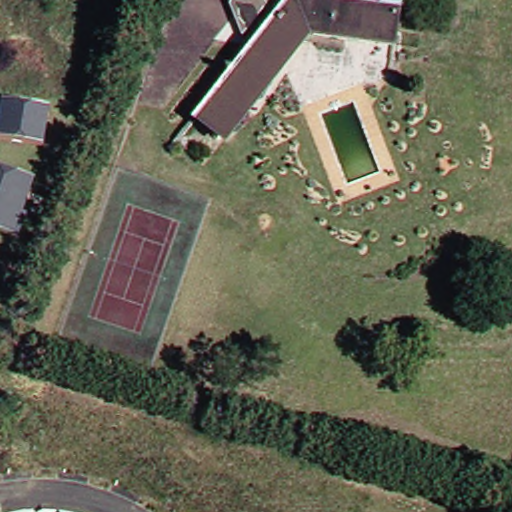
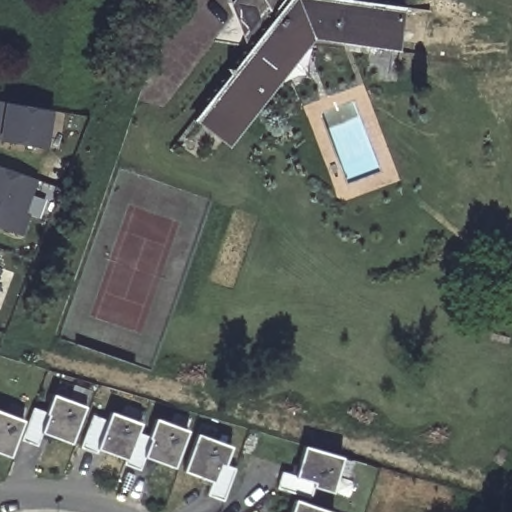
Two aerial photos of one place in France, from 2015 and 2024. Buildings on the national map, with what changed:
unchanged [(396,41),(313,30),(227,138),(197,116),(209,101),(211,101),(211,98),(251,48),(235,11),(240,5),(243,0),(360,0),(401,6),(396,41)]
unchanged [(45,148),(0,139),(0,102),(51,109),(45,148)]
unchanged [(25,215),(28,217),(23,237),(0,228),(0,168),(35,179),(25,215)]
new [(33,408),(45,413),(52,395),(85,407),(71,443),(41,432),(36,445),(21,440),(33,408)]
new [(10,457),(0,453),(0,411),(24,420),(10,457)]
new [(107,421),(110,413),(141,423),(138,433),(149,437),(155,419),(187,431),(174,467),(144,456),(140,470),(124,465),(126,460),(97,449),(96,453),(81,448),(92,416),(107,421)]
new [(230,447),(223,465),(235,469),(224,500),(208,495),(213,481),(185,471),(197,435),(230,447)]
new [(293,476),(303,446),(342,457),(331,492),(312,486),(309,497),(277,488),(281,472),(293,476)]
new [(295,500),(333,512),(290,512),(295,500)]

